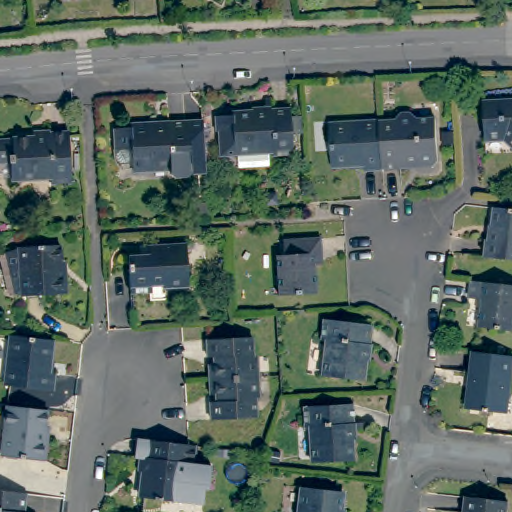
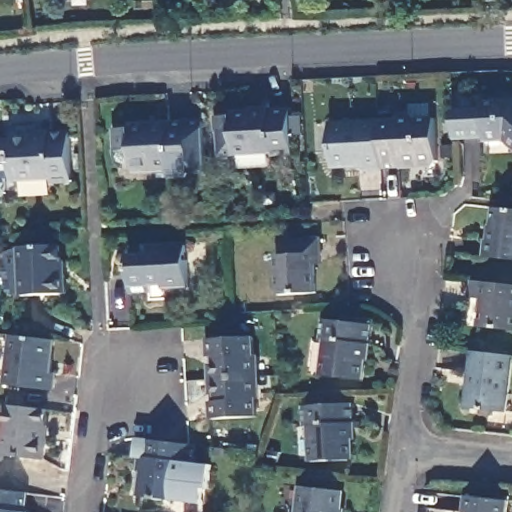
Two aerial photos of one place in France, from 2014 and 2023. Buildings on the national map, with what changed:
unchanged [(512,95),(512,135),(509,133),(488,133),(486,96),(512,95)]
unchanged [(289,155),(287,151),(249,152),(249,156),(234,156),(232,116),(245,116),(245,113),(302,110),(305,110),(308,155),(305,155),(289,155)]
unchanged [(381,168),(378,121),(396,121),(396,118),(400,113),(410,113),(415,116),(415,119),(435,118),(437,161),(433,166),(423,166),(400,167),(381,168)]
unchanged [(365,169),(364,165),(332,166),(330,124),(378,121),(381,168),(365,169)]
unchanged [(195,170),(175,170),(174,165),(157,166),(157,171),(138,171),(137,169),(126,169),(119,166),(116,156),(116,149),(120,148),(120,129),(136,128),(136,125),(161,123),(161,126),(173,126),(172,123),(194,122),(195,170)]
unchanged [(443,144),(443,132),(454,131),(455,143),(443,144)]
unchanged [(54,184),(54,179),(18,180),(17,158),(0,158),(0,152),(0,140),(16,139),(53,138),(52,134),(73,134),(75,183),(54,184)]
unchanged [(485,257),(485,245),(490,245),(493,207),(512,209),(512,260),(485,257)]
unchanged [(275,257),(282,256),(281,240),(318,238),(320,253),(320,265),(314,265),(315,293),(277,295),(275,257)]
unchanged [(30,247),(69,245),(71,275),(75,274),(76,293),(32,296),(32,295),(18,292),(10,254),(30,247)]
unchanged [(158,252),(157,247),(195,246),(198,284),(172,286),(171,284),(160,285),(160,291),(140,293),(139,254),(158,252)]
unchanged [(482,331),(485,305),(473,303),(475,285),(512,289),(512,334),(482,331)]
unchanged [(372,327),(370,347),(367,346),(364,380),(323,376),(328,342),(321,341),(323,320),(372,327)]
unchanged [(54,367),(59,368),(56,387),(10,380),(15,330),(57,335),(54,367)]
unchanged [(212,384),(211,369),(219,368),(218,362),(211,362),(211,344),(258,342),(262,422),(215,424),(214,407),(220,407),(220,399),(212,399),(212,384)]
unchanged [(511,417),(471,412),(478,356),(512,359),(512,408),(511,417)]
unchanged [(355,403),(356,424),(352,424),(353,458),(313,460),(311,426),(305,426),(303,405),(355,403)]
unchanged [(43,438),(46,439),(44,460),(2,454),(7,406),(45,410),(43,438)]
unchanged [(194,464),(188,463),(184,502),(161,499),(161,500),(153,499),(152,498),(140,495),(142,474),(137,466),(139,458),(135,457),(137,438),(188,444),(196,445),(194,464)]
unchanged [(302,487),(342,491),(341,512),(300,512),(302,487)]
unchanged [(0,494),(31,498),(30,512),(0,512),(0,494)]
unchanged [(510,501),(509,512),(466,512),(467,496),(510,501)]

